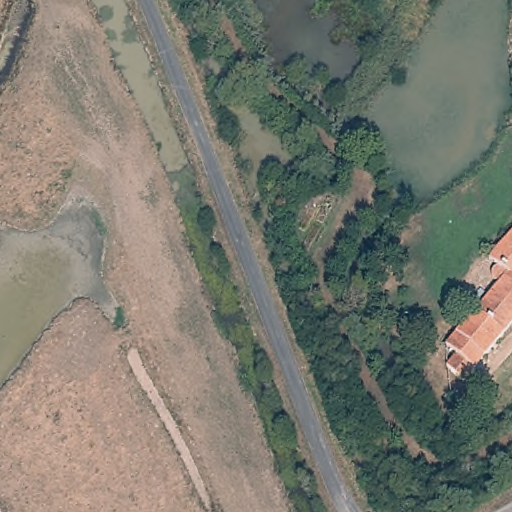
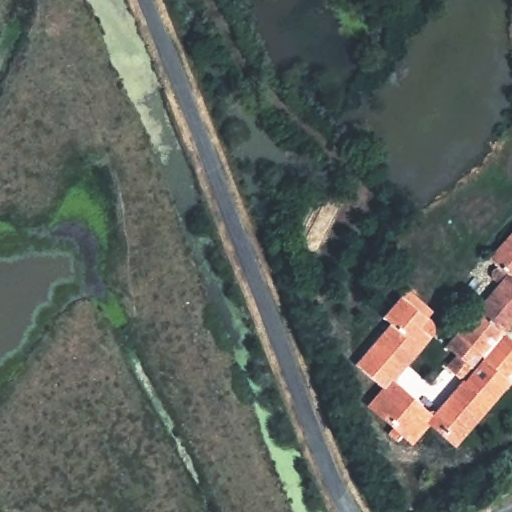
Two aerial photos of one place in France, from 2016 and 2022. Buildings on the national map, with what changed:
unchanged [(465,384),(445,368),(452,358),(440,349),(495,287),(503,275),(481,257),(504,229),(512,218),(512,325),(465,384)]
new [(389,324),(381,316),(407,288),(434,310),(428,317),(439,327),(430,338),(393,380),(432,414),(461,381),(465,384),(505,334),(512,341),(512,369),(505,378),(510,383),(455,448),(429,427),(411,446),(366,406),(382,389),(354,364),(389,324)]

